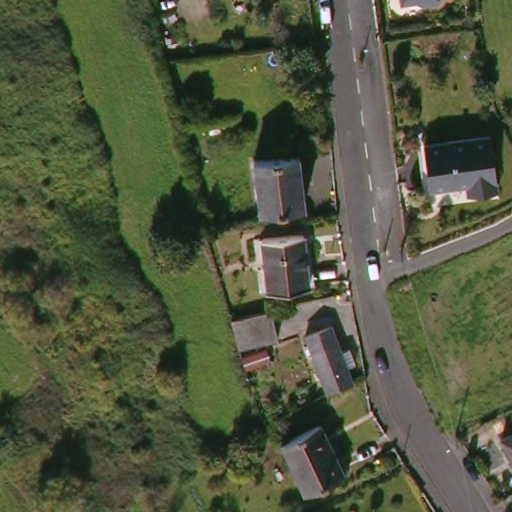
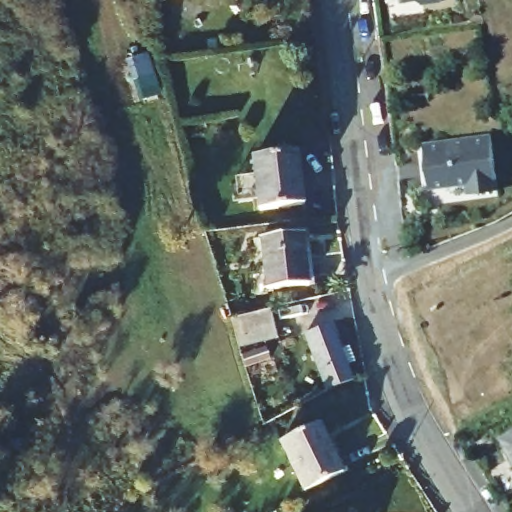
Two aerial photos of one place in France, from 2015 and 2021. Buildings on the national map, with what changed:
unchanged [(411,0),(417,0),(412,1),(411,0)]
unchanged [(430,0),(448,0),(433,2),(430,0)]
unchanged [(499,129),(508,179),(484,184),(471,185),(464,168),(452,137),(499,129)]
unchanged [(442,191),(438,172),(432,141),(452,137),(464,168),(471,185),(442,191)]
unchanged [(264,161),(309,155),(315,205),(269,211),(264,161)]
unchanged [(269,239),(311,235),(315,286),(274,290),(269,239)]
unchanged [(241,320),(284,310),(289,341),(250,350),(241,320)]
unchanged [(315,332),(342,321),(364,376),(338,387),(315,332)]
unchanged [(287,445),(324,425),(335,442),(341,440),(357,468),(313,492),(287,445)]
unchanged [(511,438),(512,437),(512,440),(511,438)]

